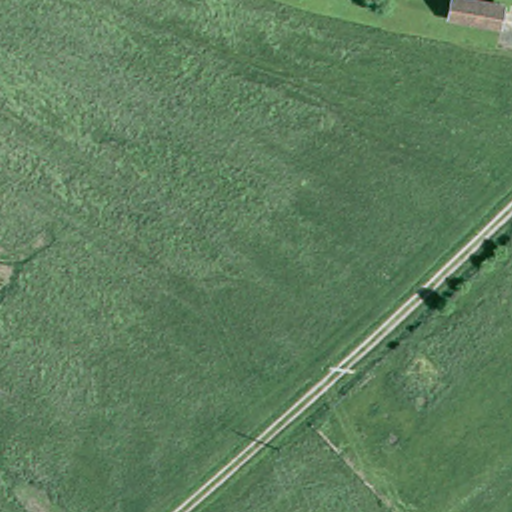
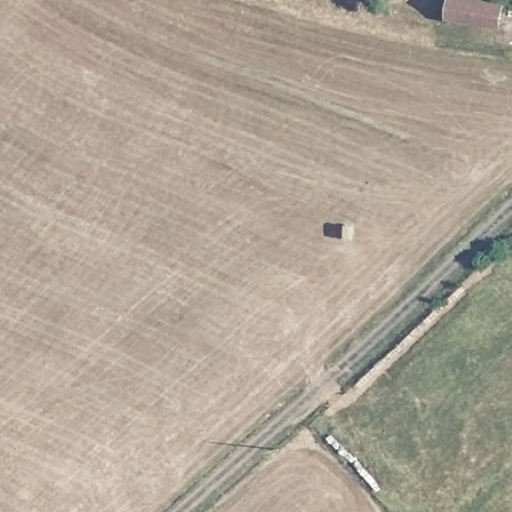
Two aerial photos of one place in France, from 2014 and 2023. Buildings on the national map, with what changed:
unchanged [(471,0),(503,6),(500,28),(450,19),(453,0),(471,0)]

